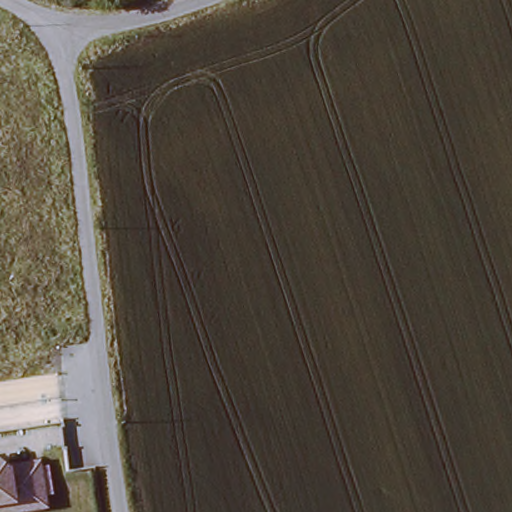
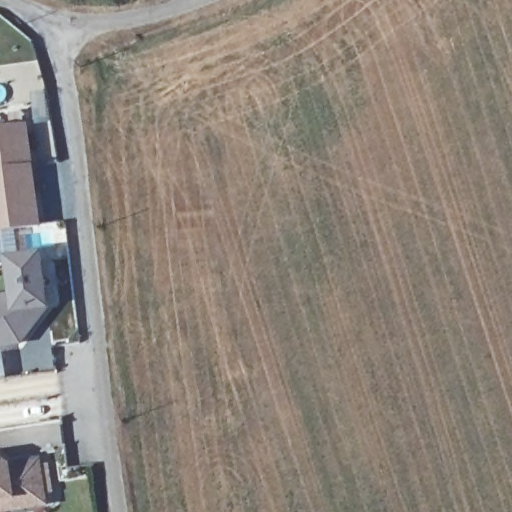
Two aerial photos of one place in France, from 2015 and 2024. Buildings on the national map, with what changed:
new [(30,125),(35,166),(41,227),(0,232),(0,129),(30,125)]
new [(10,293),(5,258),(42,254),(51,308),(21,346),(0,350),(0,295),(10,293)]
unchanged [(32,512),(0,512),(0,457),(10,464),(43,459),(51,509),(32,512)]

